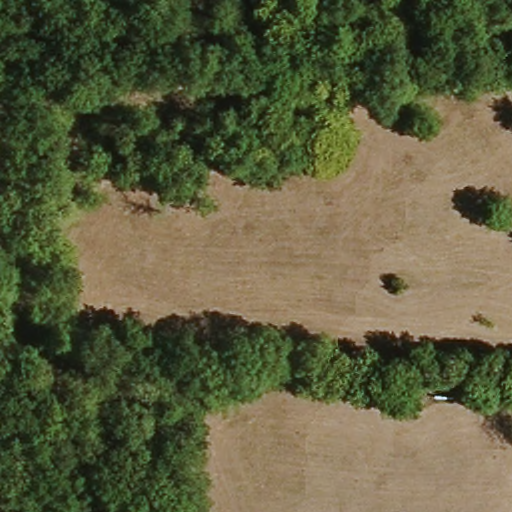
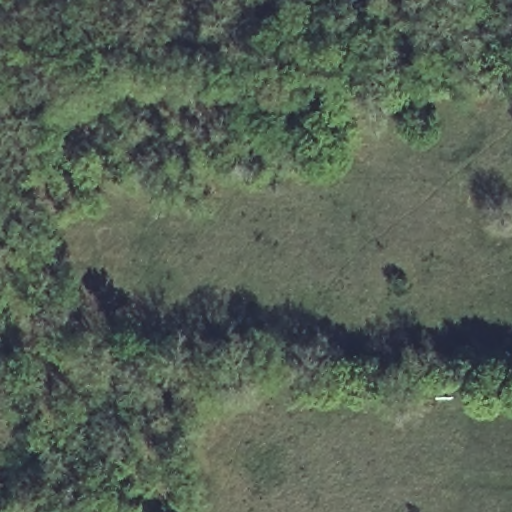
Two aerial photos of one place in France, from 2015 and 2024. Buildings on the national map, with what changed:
[]

